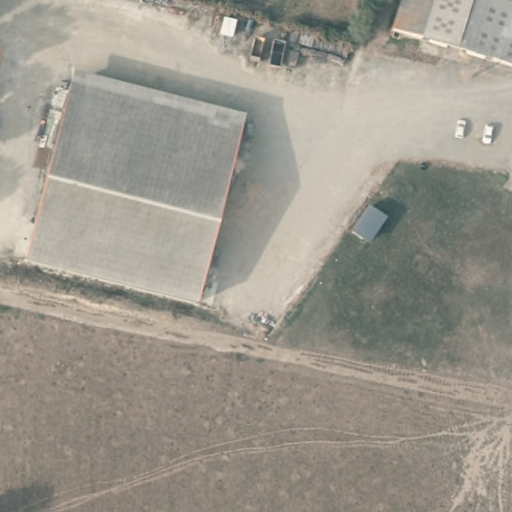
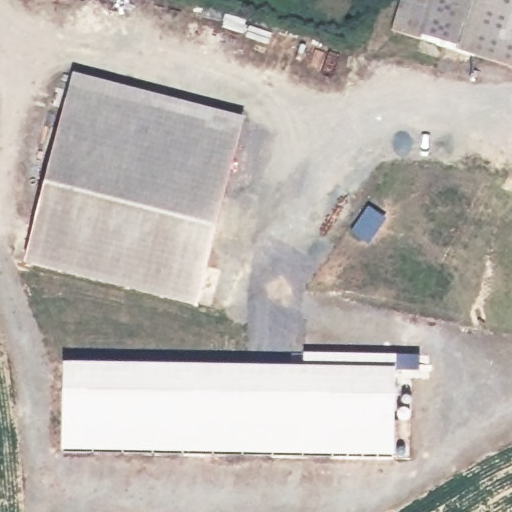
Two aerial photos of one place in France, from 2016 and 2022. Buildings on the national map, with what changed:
unchanged [(396,27),(405,0),(440,0),(427,37),(396,27)]
unchanged [(427,37),(440,0),(512,0),(512,68),(427,37)]
unchanged [(239,126),(195,300),(26,256),(70,82),(239,126)]
new [(302,365),(301,351),(419,353),(419,370),(394,367),(394,456),(61,448),(61,361),(302,365)]

